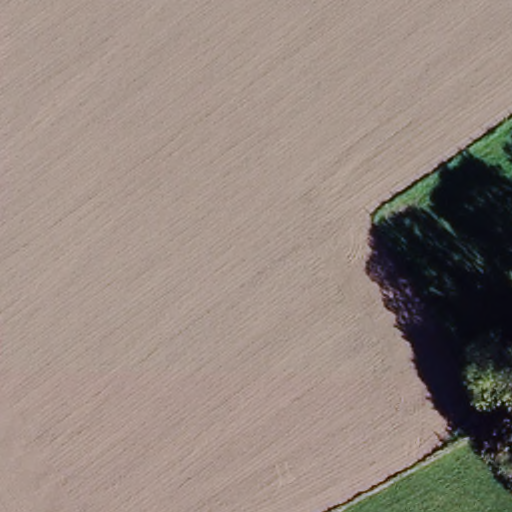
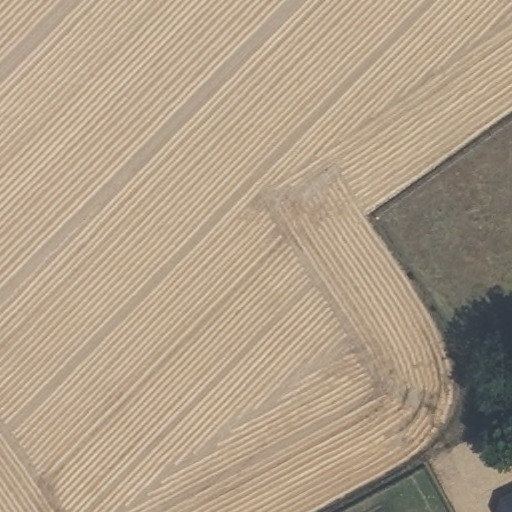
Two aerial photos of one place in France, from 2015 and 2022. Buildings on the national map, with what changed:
[]

